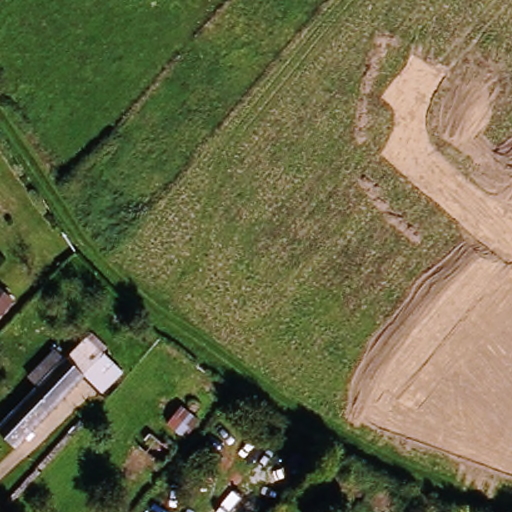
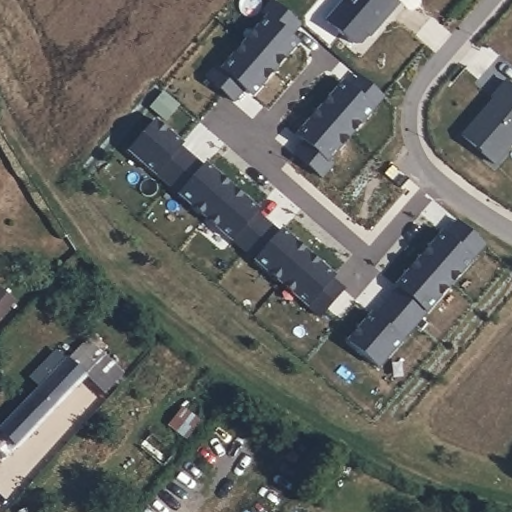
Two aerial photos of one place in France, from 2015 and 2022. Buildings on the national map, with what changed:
new [(361,43),(354,44),(327,21),(346,0),(396,0),(399,3),(377,28),(370,37),(368,35),(361,43)]
new [(301,43),(253,97),(221,69),(267,16),(301,43)]
new [(376,110),(329,164),(296,136),(343,81),(376,110)]
new [(496,94),(507,82),(512,86),(512,144),(495,164),(462,136),(498,95),(496,94)]
new [(185,144),(156,177),(126,151),(156,119),(185,144)]
new [(260,210),(232,242),(178,193),(206,162),(260,210)]
new [(338,273),(306,312),(250,263),(283,225),(338,273)]
new [(476,261),(429,315),(395,285),(442,232),(476,261)]
unchanged [(10,296),(0,308),(0,287),(10,296)]
new [(406,342),(381,370),(346,342),(372,313),(406,342)]
unchanged [(2,457),(0,457),(0,435),(3,431),(0,428),(40,386),(30,377),(45,362),(57,346),(68,356),(86,337),(122,371),(104,390),(86,373),(18,446),(17,444),(7,455),(2,457)]
unchanged [(195,413),(181,432),(165,418),(178,401),(195,413)]

